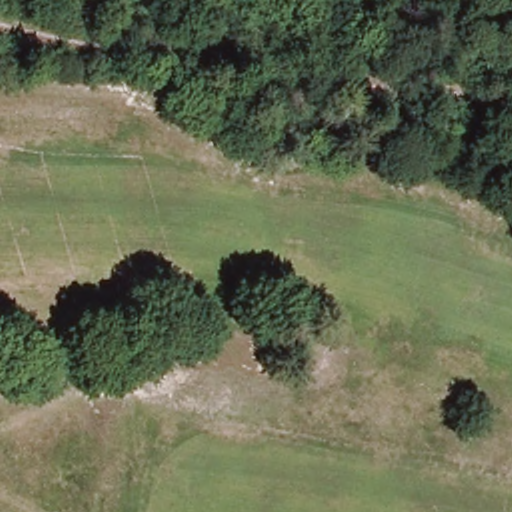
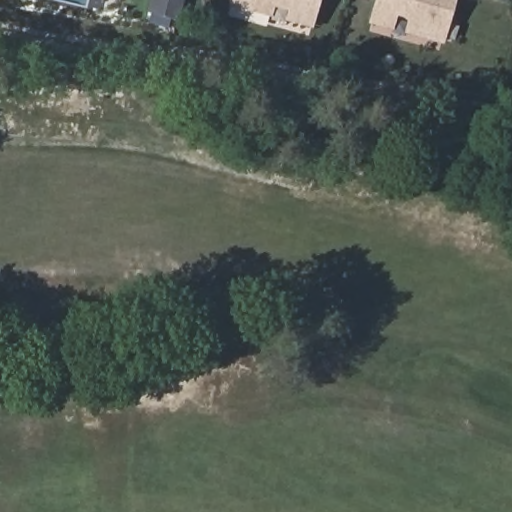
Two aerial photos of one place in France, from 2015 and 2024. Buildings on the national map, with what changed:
new [(180,21),(147,13),(151,0),(186,0),(180,21)]
new [(313,29),(285,21),(283,24),(270,20),(271,17),(228,6),(230,0),(321,0),(313,29)]
new [(375,0),(457,0),(445,46),(403,34),(392,30),(368,24),(375,0)]

